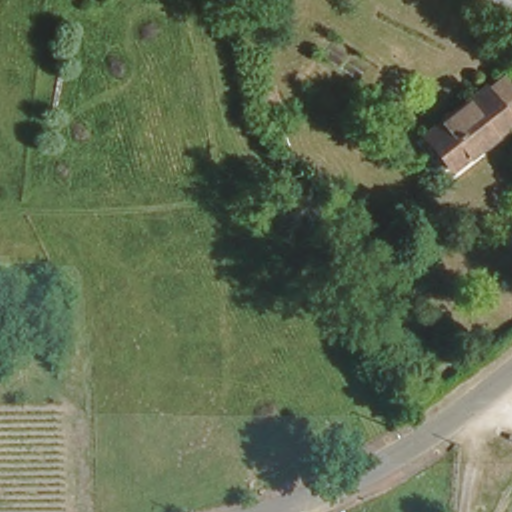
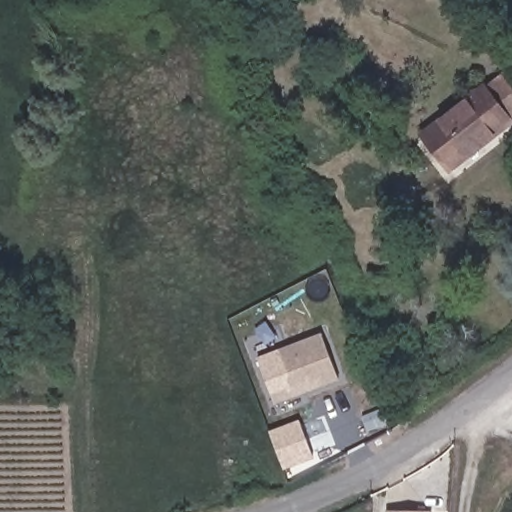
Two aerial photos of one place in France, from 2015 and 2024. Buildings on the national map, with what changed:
unchanged [(485,85),(488,88),(502,76),(512,88),(512,123),(451,169),(425,135),(485,85)]
new [(322,337),(338,382),(274,406),(257,361),(322,337)]
new [(284,471),(270,432),(300,421),(315,460),(284,471)]

